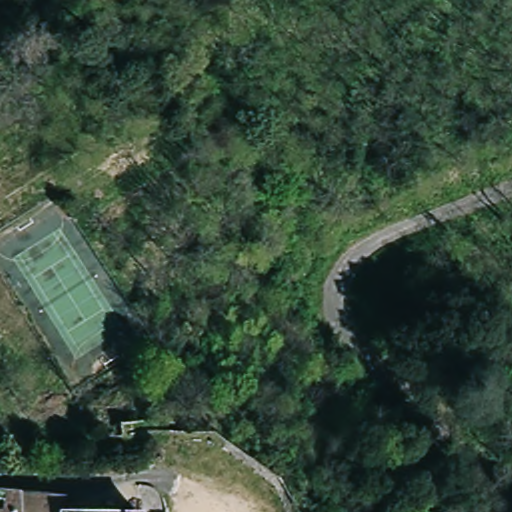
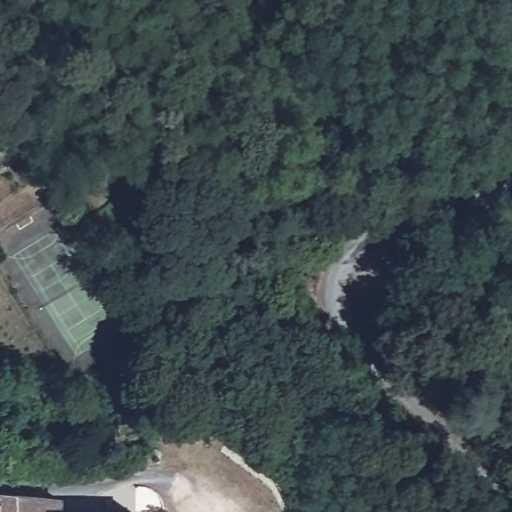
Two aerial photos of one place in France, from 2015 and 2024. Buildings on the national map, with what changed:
unchanged [(0,493),(66,498),(64,512),(0,512),(0,493)]

